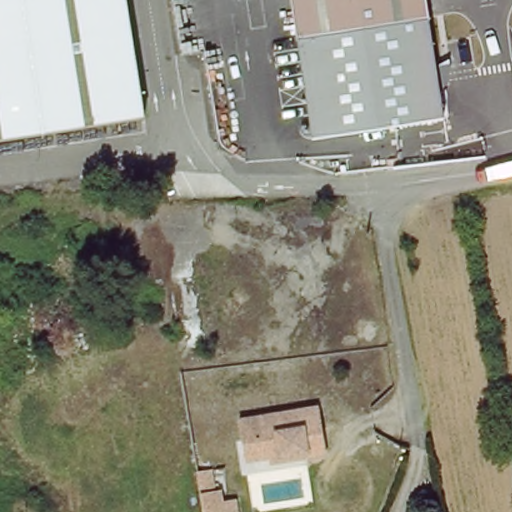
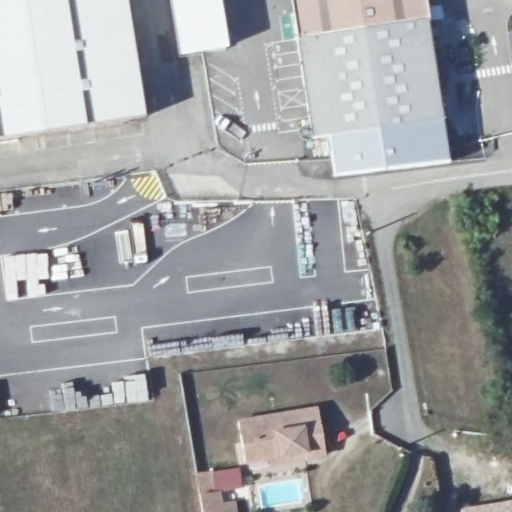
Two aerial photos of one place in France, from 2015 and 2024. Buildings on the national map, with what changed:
unchanged [(129,0),(147,116),(0,139),(0,0),(129,0)]
new [(219,0),(227,52),(181,59),(172,0),(219,0)]
unchanged [(315,139),(292,0),(428,0),(449,118),(315,139)]
unchanged [(268,465),(267,463),(244,467),(237,426),(316,414),(323,459),(308,462),(305,462),(268,468),(268,465)]
unchanged [(197,478),(209,477),(212,498),(222,498),(224,512),(202,512),(197,478)]
new [(512,512),(460,512),(459,508),(512,499),(512,512)]

